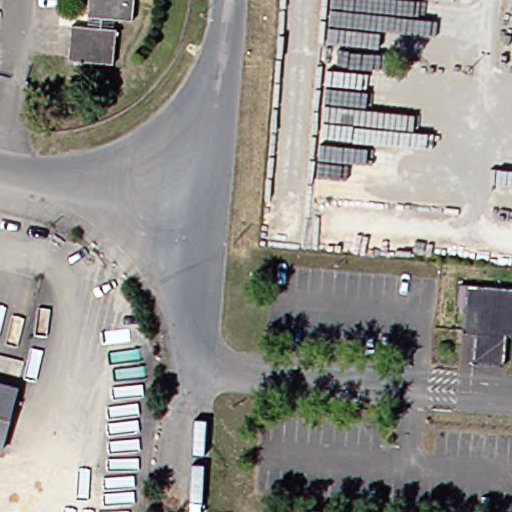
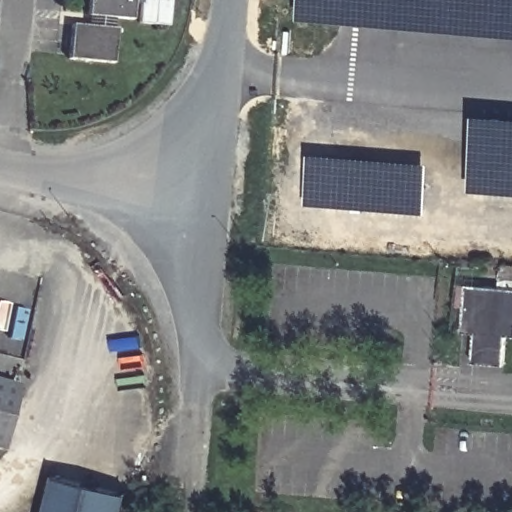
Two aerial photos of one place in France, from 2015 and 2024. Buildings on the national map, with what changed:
unchanged [(106,20),(105,32),(111,32),(106,66),(60,62),(63,28),(84,29),(86,20),(81,19),(83,0),(129,0),(127,22),(106,20)]
new [(139,0),(170,0),(168,26),(137,23),(139,0)]
new [(512,0),(512,36),(299,18),(301,0),(512,0)]
new [(477,114),(512,116),(512,193),(470,190),(477,114)]
new [(308,152),(428,164),(425,214),(306,204),(308,152)]
unchanged [(512,286),(512,334),(504,333),(502,363),(470,362),(474,331),(460,330),(464,282),(512,286)]
unchanged [(0,437),(0,383),(13,387),(0,437)]
new [(56,474),(129,492),(124,512),(46,512),(56,474)]

